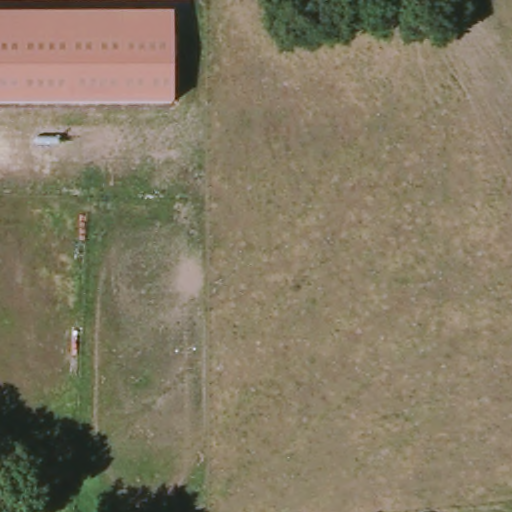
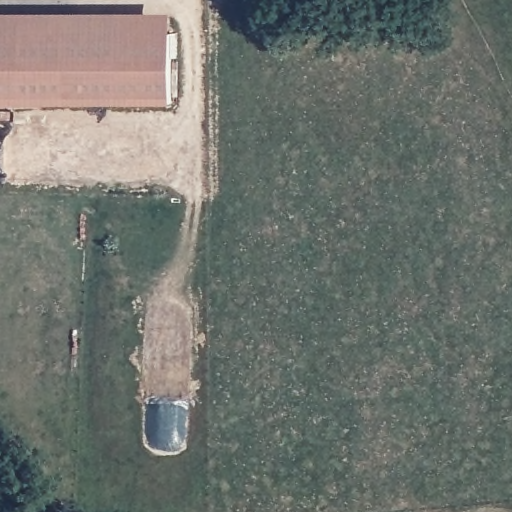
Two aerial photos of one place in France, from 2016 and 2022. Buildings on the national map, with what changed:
unchanged [(170,12),(170,102),(0,102),(0,12),(170,12)]

